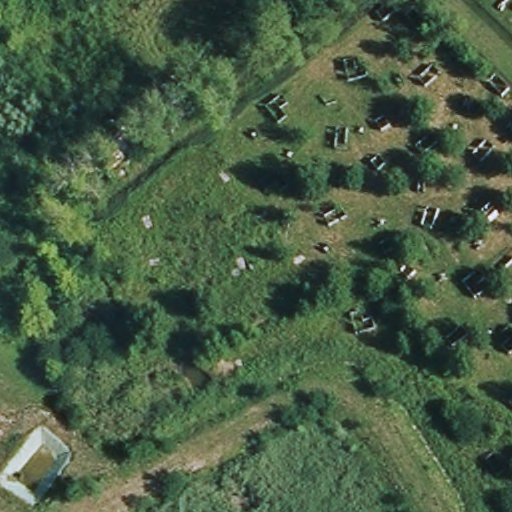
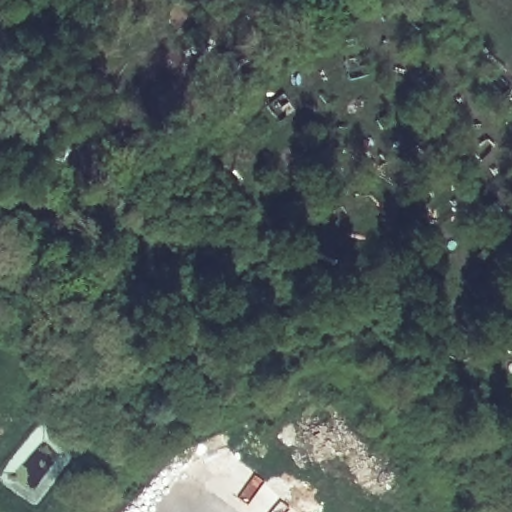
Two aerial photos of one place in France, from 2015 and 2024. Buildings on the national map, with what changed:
[]

